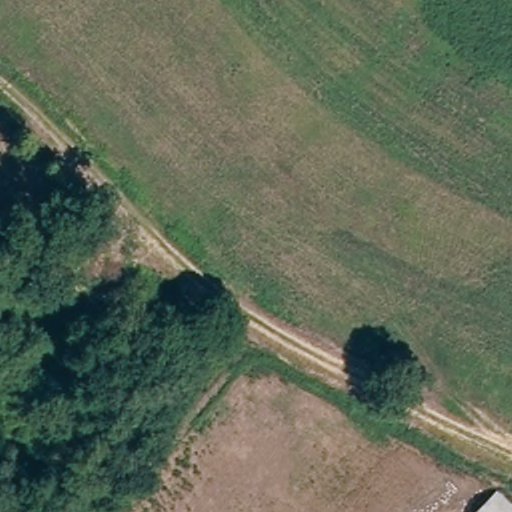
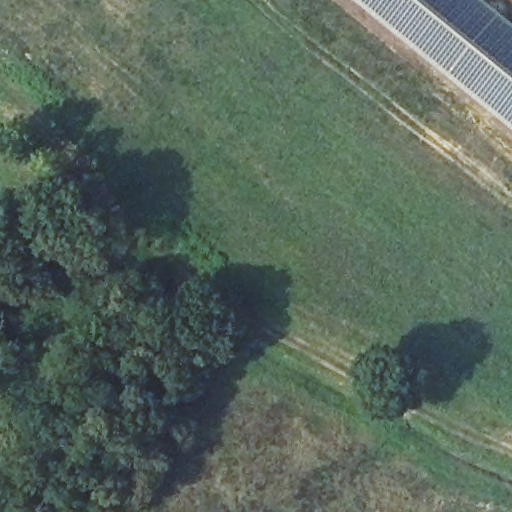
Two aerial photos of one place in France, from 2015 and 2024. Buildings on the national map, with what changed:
new [(512,24),(512,132),(352,0),(483,0),(512,24)]
demolished [(512,500),(512,512),(475,512),(498,486),(512,500)]

